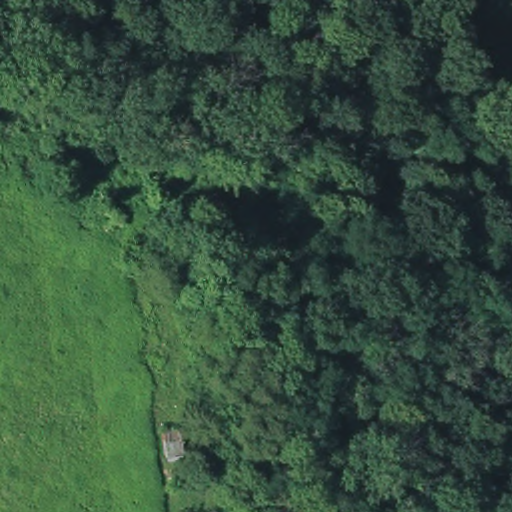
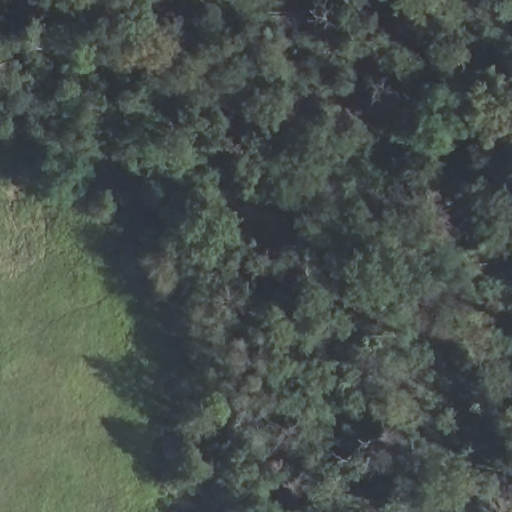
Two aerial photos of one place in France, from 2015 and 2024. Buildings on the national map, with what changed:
unchanged [(157,429),(180,428),(182,457),(162,459),(157,429)]

